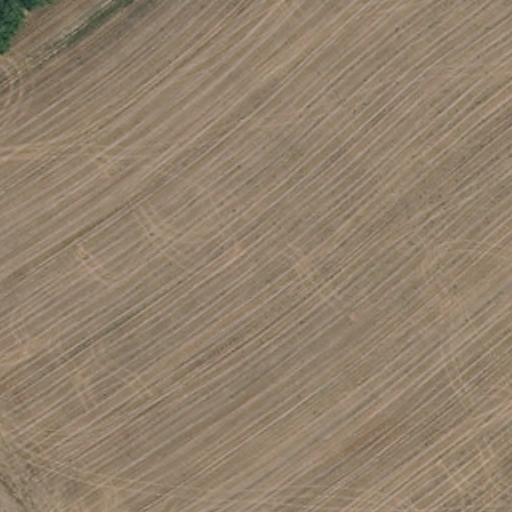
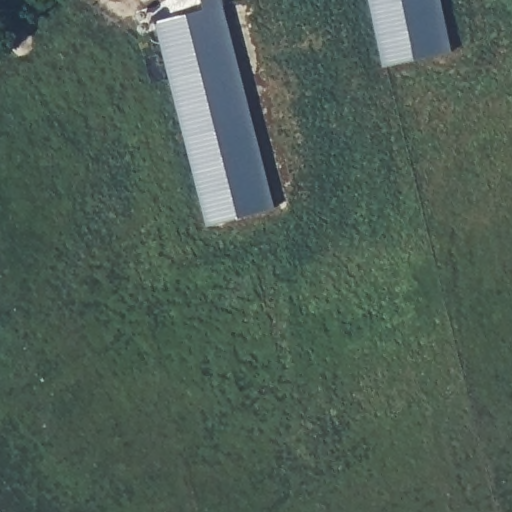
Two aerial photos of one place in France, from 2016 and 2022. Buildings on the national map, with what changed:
new [(207,8),(205,0),(225,0),(277,209),(210,226),(159,22),(207,8)]
new [(443,0),(454,51),(386,65),(373,0),(443,0)]

